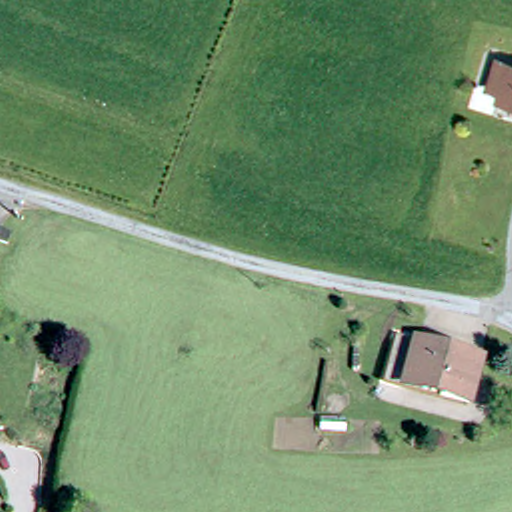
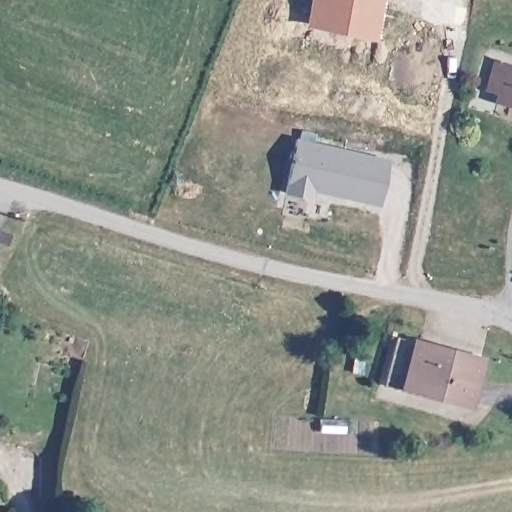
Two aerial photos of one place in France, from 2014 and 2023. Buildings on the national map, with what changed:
new [(375,0),(368,33),(309,20),(313,0),(375,0)]
unchanged [(501,99),(504,90),(492,88),(500,63),(512,66),(512,102),(501,99)]
new [(297,139),(364,155),(354,199),(313,189),(310,198),(285,192),(297,139)]
new [(364,155),(388,160),(378,204),(354,199),(364,155)]
unchanged [(0,239),(2,235),(14,239),(10,249),(0,246),(0,239)]
unchanged [(419,340),(484,359),(471,403),(425,389),(425,385),(409,380),(407,384),(387,378),(400,335),(419,340)]
unchanged [(347,425),(346,438),(320,437),(320,424),(347,425)]

